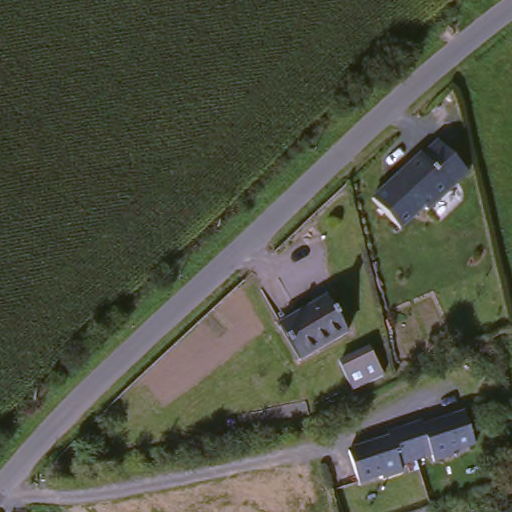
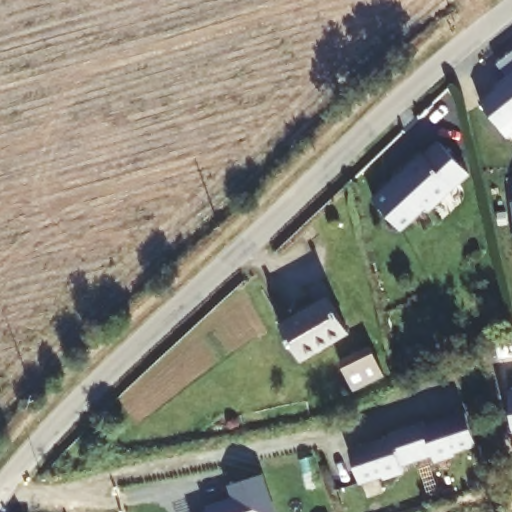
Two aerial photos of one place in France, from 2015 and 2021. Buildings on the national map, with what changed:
new [(505,79),(494,65),(512,51),(512,74),(505,79)]
unchanged [(424,205),(400,225),(375,194),(423,155),(425,156),(440,145),(458,166),(458,167),(465,177),(451,189),(428,210),(424,205)]
unchanged [(327,301),(347,337),(297,365),(278,327),(327,301)]
unchanged [(373,341),(387,372),(353,384),(345,354),(373,341)]
unchanged [(430,461),(428,455),(401,465),(405,473),(357,486),(346,450),(388,436),(385,428),(416,420),(417,425),(463,408),(475,445),(430,461)]
new [(195,512),(204,510),(203,503),(229,497),(226,485),(263,475),(275,512),(195,512)]

